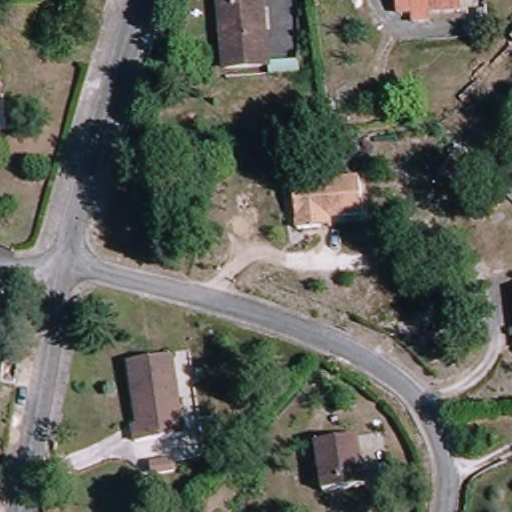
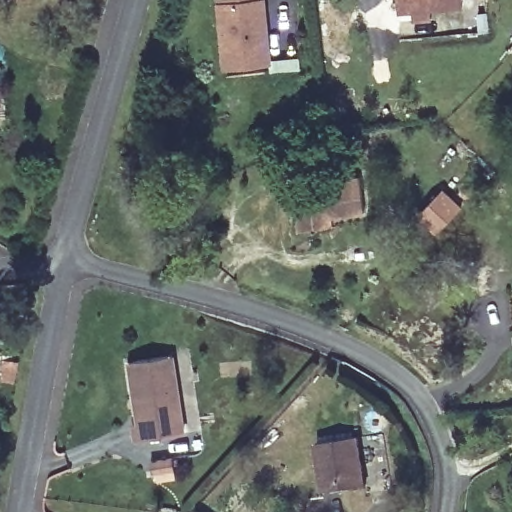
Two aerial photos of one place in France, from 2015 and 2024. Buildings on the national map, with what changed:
unchanged [(228,78),(222,0),(261,0),(267,75),(228,78)]
unchanged [(460,14),(402,16),(401,0),(460,0),(460,14)]
unchanged [(320,232),(301,233),(298,184),(360,177),(364,213),(333,216),(335,230),(320,232)]
new [(445,189),(462,207),(437,231),(419,213),(445,189)]
unchanged [(144,422),(144,395),(136,395),(136,363),(177,360),(183,435),(134,438),(133,423),(144,422)]
unchanged [(326,493),(318,444),(360,437),(368,487),(326,493)]
unchanged [(170,457),(185,457),(186,468),(171,471),(170,457)]

